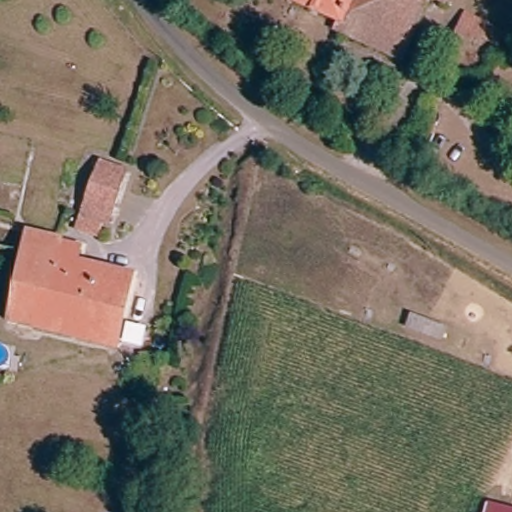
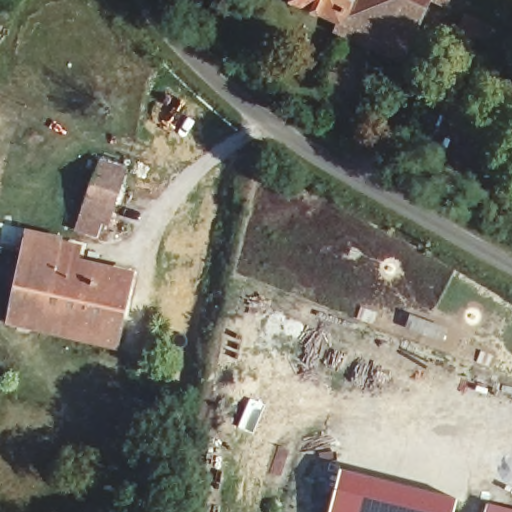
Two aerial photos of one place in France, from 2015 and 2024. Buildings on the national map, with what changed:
unchanged [(291,13),(296,0),(338,0),(327,26),(291,13)]
unchanged [(323,37),(327,26),(338,0),(438,0),(435,7),(418,0),(392,61),(328,39),(323,37)]
unchanged [(512,68),(480,58),(474,70),(447,60),(459,29),(512,50),(512,68)]
unchanged [(108,241),(81,233),(94,181),(101,152),(127,159),(108,241)]
unchanged [(19,260),(45,266),(48,254),(73,260),(72,270),(87,273),(116,279),(104,343),(6,324),(19,260)]
unchanged [(115,322),(130,325),(127,341),(112,338),(115,322)]
new [(459,498),(455,512),(327,512),(339,468),(459,498)]
unchanged [(512,509),(512,512),(484,512),(487,502),(512,509)]

